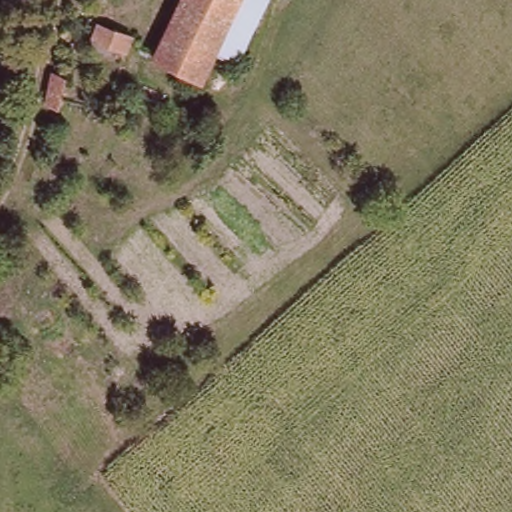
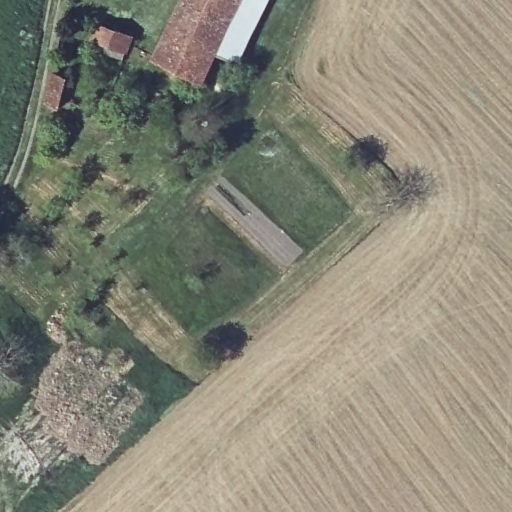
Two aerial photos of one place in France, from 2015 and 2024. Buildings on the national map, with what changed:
unchanged [(204,84),(158,62),(186,0),(267,0),(259,18),(240,61),(219,51),(204,84)]
unchanged [(132,42),(125,56),(91,41),(100,27),(132,42)]

